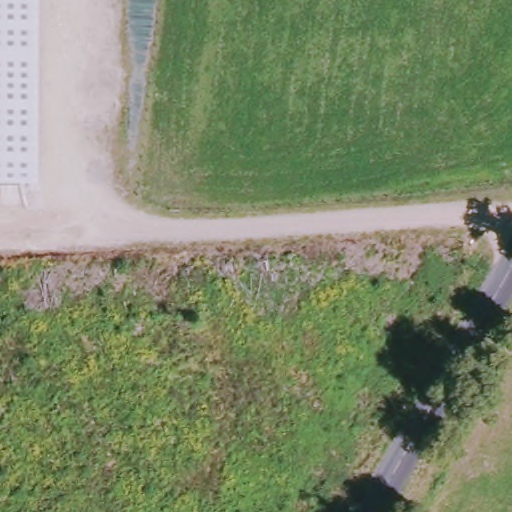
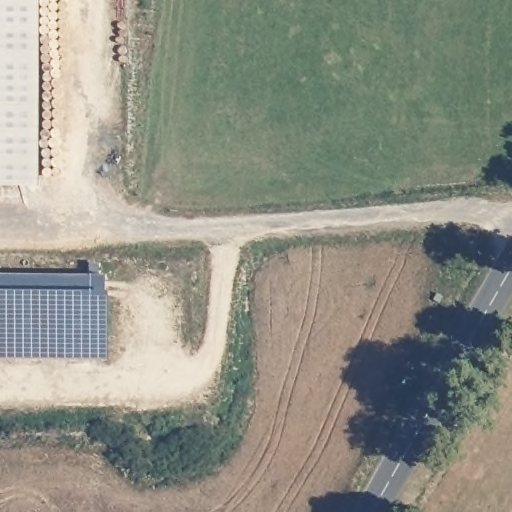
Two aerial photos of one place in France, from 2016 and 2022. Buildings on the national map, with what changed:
unchanged [(36,184),(0,184),(0,0),(37,0),(36,184)]
new [(0,358),(0,274),(106,274),(106,290),(110,290),(108,358),(0,358)]

